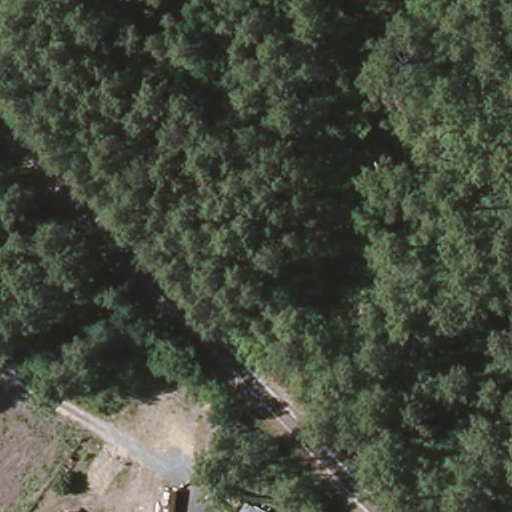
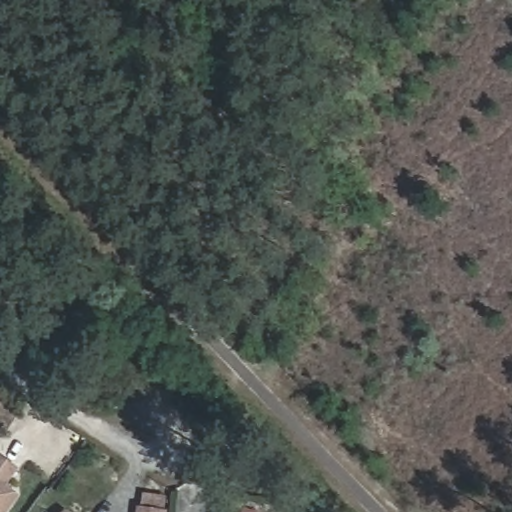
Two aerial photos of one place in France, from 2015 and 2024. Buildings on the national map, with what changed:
new [(9,483),(23,493),(9,512),(0,512),(0,452),(21,467),(9,483)]
new [(138,512),(139,505),(172,508),(171,512),(138,512)]
unchanged [(75,512),(64,512),(69,506),(75,512)]

